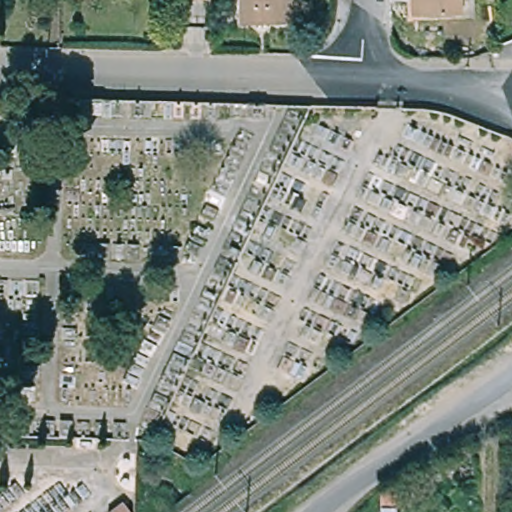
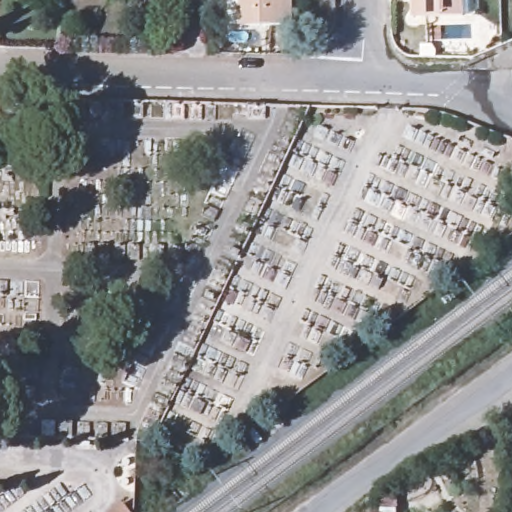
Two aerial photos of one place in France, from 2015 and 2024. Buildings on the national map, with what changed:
unchanged [(244,22),(244,0),(294,0),(294,21),(244,22)]
unchanged [(460,0),(460,16),(418,16),(409,17),(409,0),(460,0)]
unchanged [(116,508),(125,501),(133,512),(119,512),(116,508)]
unchanged [(397,508),(398,512),(380,512),(380,508),(397,508)]

